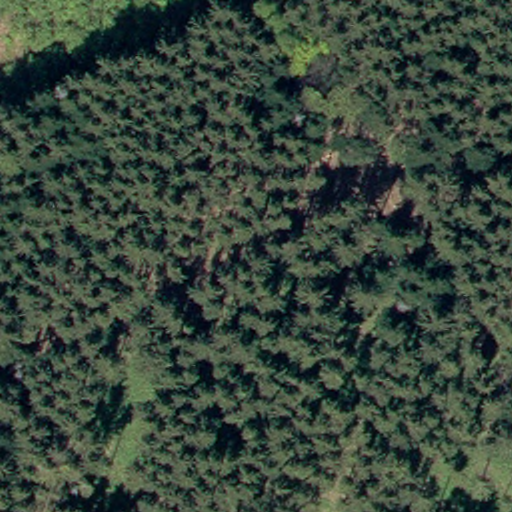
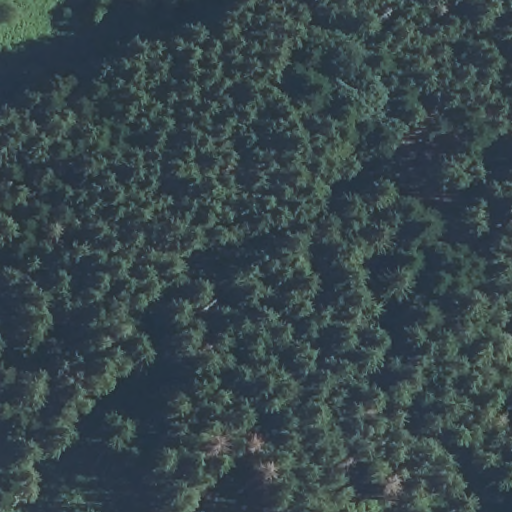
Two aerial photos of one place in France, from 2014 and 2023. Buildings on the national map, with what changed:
[]

